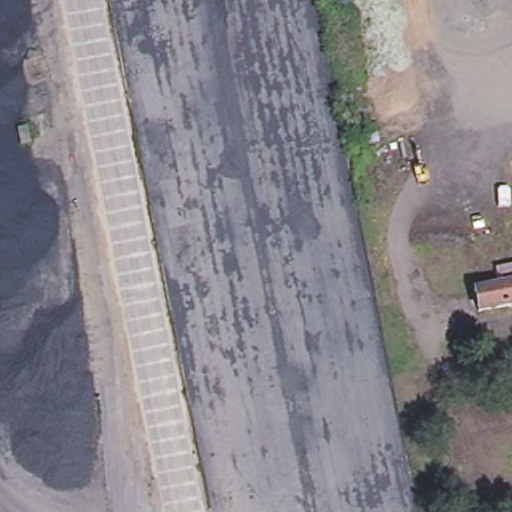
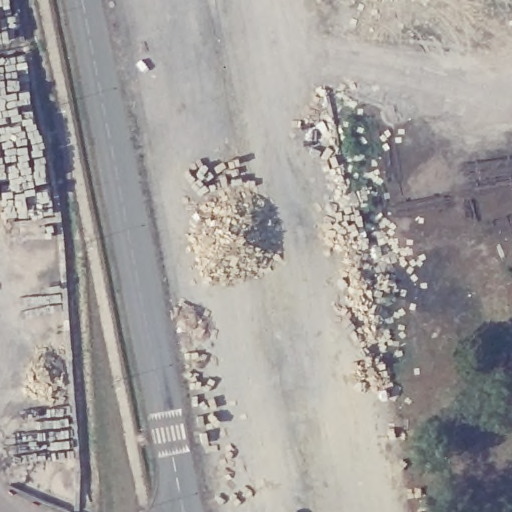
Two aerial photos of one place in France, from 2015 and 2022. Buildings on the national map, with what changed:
demolished [(512,311),(482,317),(477,286),(512,281),(512,311)]

